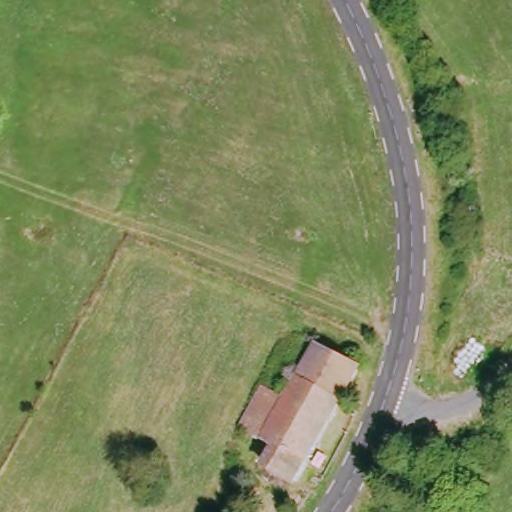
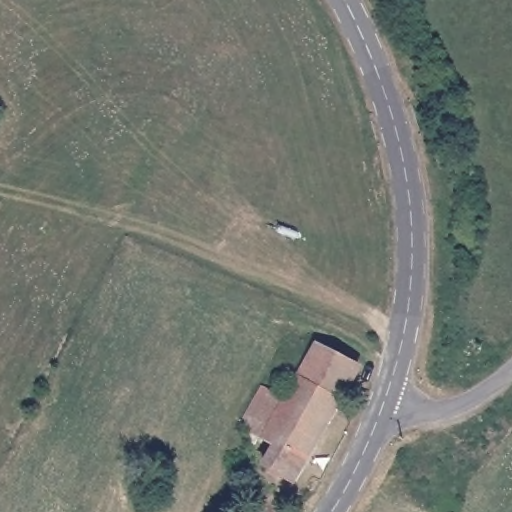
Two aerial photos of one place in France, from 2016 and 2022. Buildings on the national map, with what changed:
unchanged [(262,471),(270,448),(238,431),(257,395),(277,398),(315,348),(353,373),(289,486),(262,471)]

